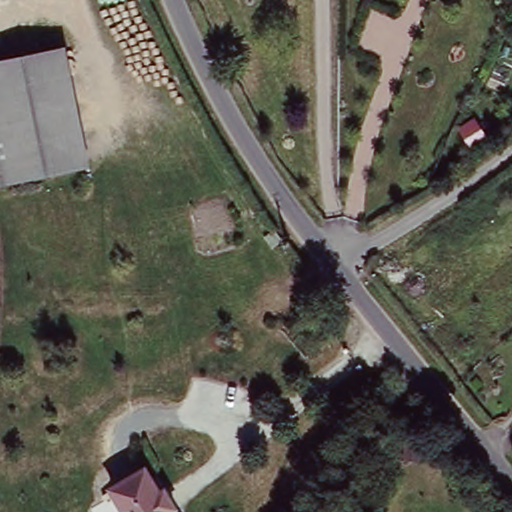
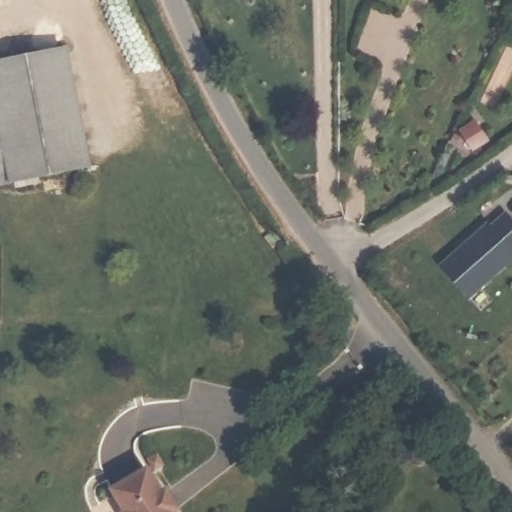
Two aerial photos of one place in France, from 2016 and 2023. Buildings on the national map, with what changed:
unchanged [(94,169),(10,185),(0,136),(0,63),(69,47),(94,169)]
unchanged [(0,136),(10,185),(0,187),(0,136)]
new [(458,245),(460,246),(465,241),(465,240),(489,217),(491,220),(506,207),(512,213),(512,254),(469,292),(441,259),(458,245)]
unchanged [(280,235),(270,242),(263,232),(273,225),(280,235)]
unchanged [(124,512),(111,495),(145,472),(174,512),(124,512)]

